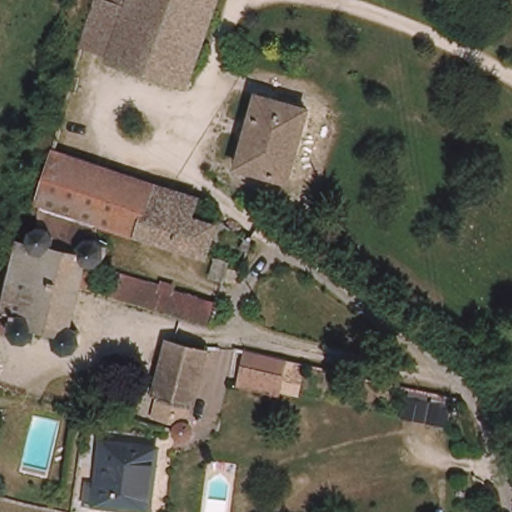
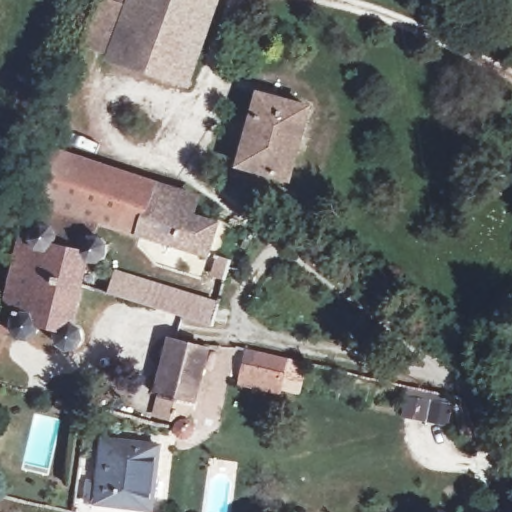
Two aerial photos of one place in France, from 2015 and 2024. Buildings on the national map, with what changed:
unchanged [(97,9),(100,10),(104,0),(133,0),(133,1),(111,59),(83,49),(82,49),(84,44),(97,9)]
unchanged [(221,0),(209,34),(133,1),(133,0),(221,0)]
unchanged [(189,88),(111,59),(133,1),(209,34),(191,84),(190,85),(189,88)]
unchanged [(313,113),(287,183),(240,165),(266,95),(313,113)]
unchanged [(229,268),(221,265),(212,262),(86,217),(67,210),(46,203),(44,202),(56,153),(156,186),(152,199),(223,223),(218,242),(234,249),(229,268)]
unchanged [(102,237),(103,247),(97,255),(88,259),(81,285),(74,315),(83,322),(84,333),(78,343),(66,345),(56,338),(54,325),(39,322),(24,330),(11,315),(14,309),(5,304),(9,288),(14,270),(21,239),(28,240),(31,225),(38,226),(44,202),(46,203),(67,210),(86,217),(84,228),(102,237)]
unchanged [(224,301),(218,322),(161,308),(166,286),(224,301)]
unchanged [(176,334),(207,342),(192,413),(159,404),(176,334)]
unchanged [(291,357),(286,392),(239,384),(246,348),(291,357)]
unchanged [(423,421),(427,396),(456,403),(450,427),(423,421)]
unchanged [(150,500),(98,494),(106,437),(156,443),(150,500)]

